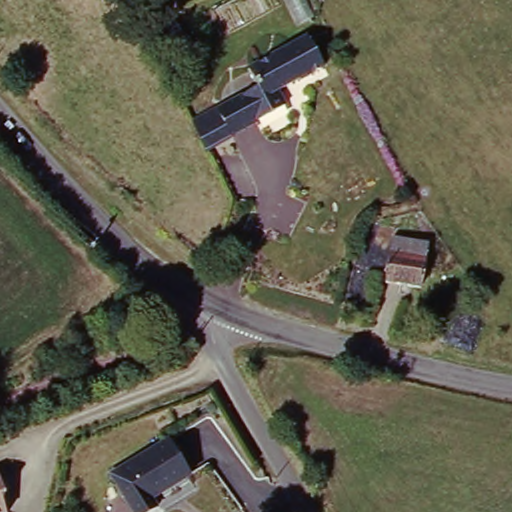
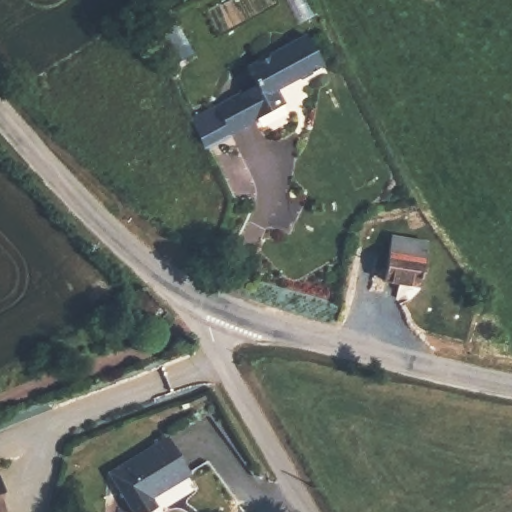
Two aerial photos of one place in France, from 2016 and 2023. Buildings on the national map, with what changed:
unchanged [(326,67),(281,95),(286,105),(205,148),(190,119),(247,88),(243,75),(309,38),(326,67)]
unchanged [(431,249),(422,289),(388,280),(397,239),(431,249)]
unchanged [(167,441),(188,476),(149,499),(154,508),(148,512),(131,512),(110,475),(167,441)]
unchanged [(0,482),(12,512),(0,512),(0,482)]

